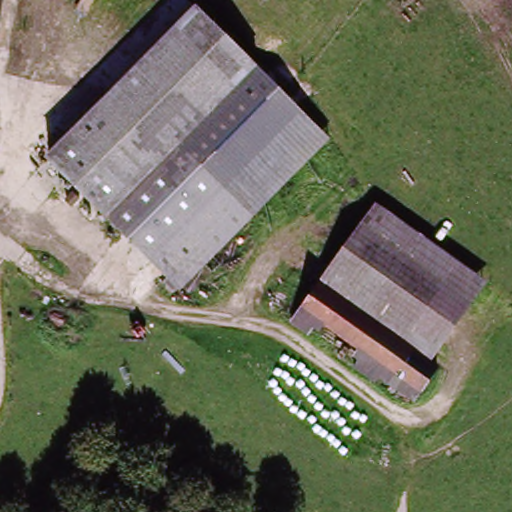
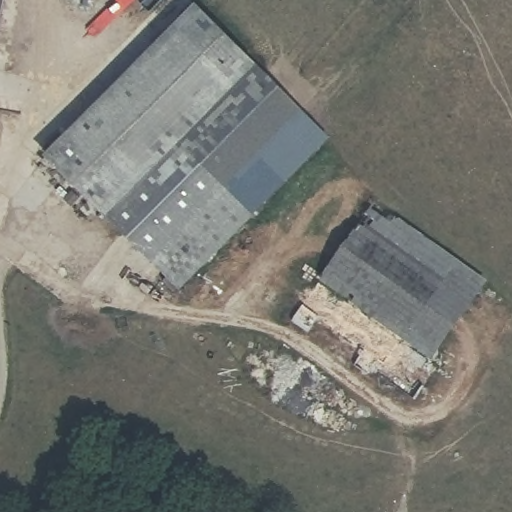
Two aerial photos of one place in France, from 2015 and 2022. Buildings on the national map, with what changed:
unchanged [(0,48),(0,0),(8,0),(0,48)]
unchanged [(182,290),(42,166),(195,7),(257,69),(299,110),(331,140),(253,218),(182,290)]
unchanged [(362,226),(375,207),(476,278),(461,299),(421,356),(400,341),(321,284),(362,226)]
unchanged [(321,284),(400,341),(421,356),(429,361),(433,364),(410,398),(375,373),(371,378),(355,366),(365,351),(320,319),(310,333),(294,321),(305,307),(321,284)]

